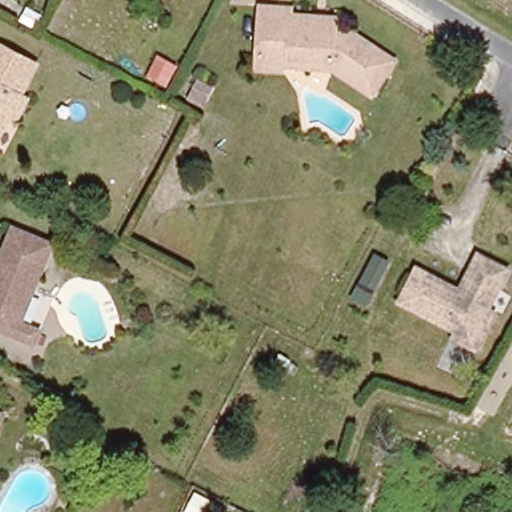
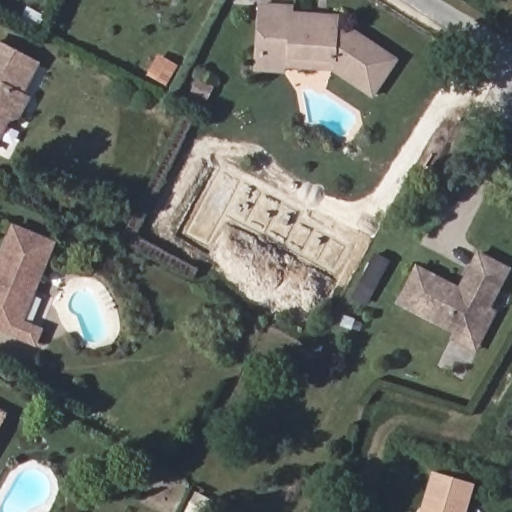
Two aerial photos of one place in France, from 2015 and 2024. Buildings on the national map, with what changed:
unchanged [(295,59),(294,66),(262,64),(267,0),(291,0),(299,0),(299,6),(346,9),(344,22),(362,24),(343,62),(295,59)]
unchanged [(404,51),(382,88),(343,62),(362,24),(404,51)]
unchanged [(35,64),(20,96),(26,99),(18,117),(6,123),(0,136),(0,48),(35,64)]
unchanged [(38,350),(18,342),(0,334),(0,268),(15,233),(56,250),(24,327),(43,336),(38,350)]
unchanged [(464,287),(482,252),(512,267),(512,271),(477,337),(403,300),(421,265),(464,287)]
unchanged [(3,419),(0,427),(0,418),(3,419)]
new [(432,470),(475,483),(467,512),(420,512),(432,470)]

